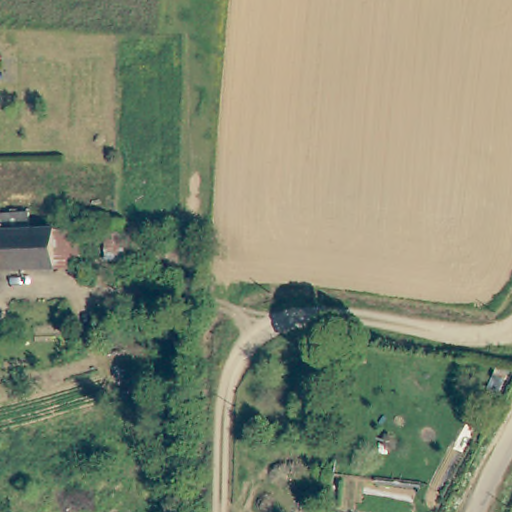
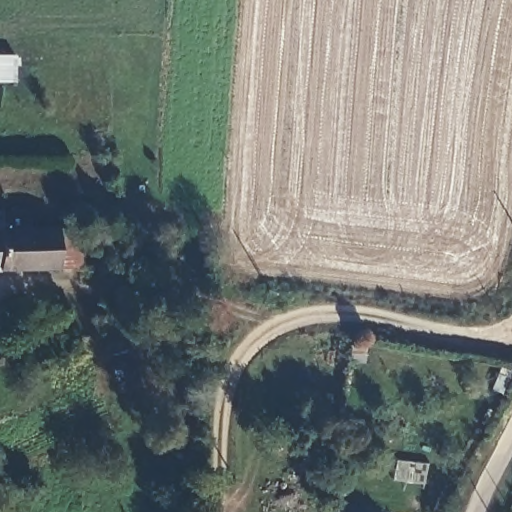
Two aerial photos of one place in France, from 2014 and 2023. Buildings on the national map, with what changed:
unchanged [(55,270),(0,272),(0,215),(11,214),(24,215),(25,232),(55,231),(78,231),(76,270),(55,270)]
unchanged [(123,257),(106,258),(103,221),(121,220),(123,257)]
unchanged [(497,390),(485,385),(496,365),(506,369),(497,390)]

